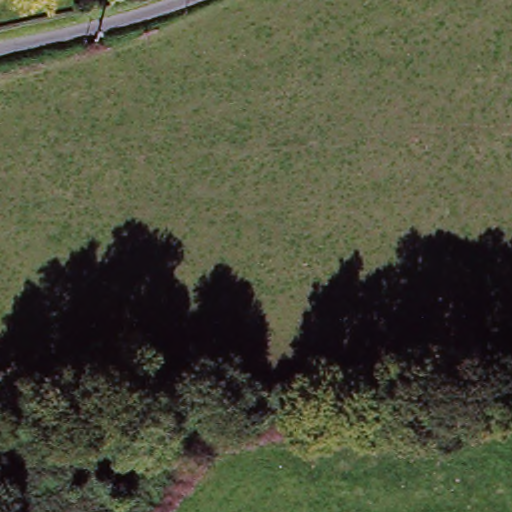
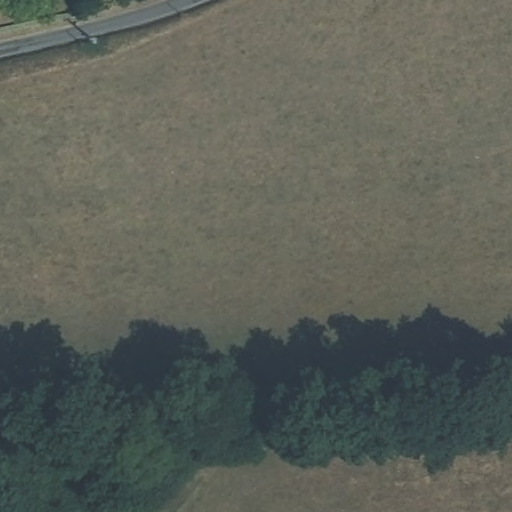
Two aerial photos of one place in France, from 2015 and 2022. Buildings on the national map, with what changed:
[]

